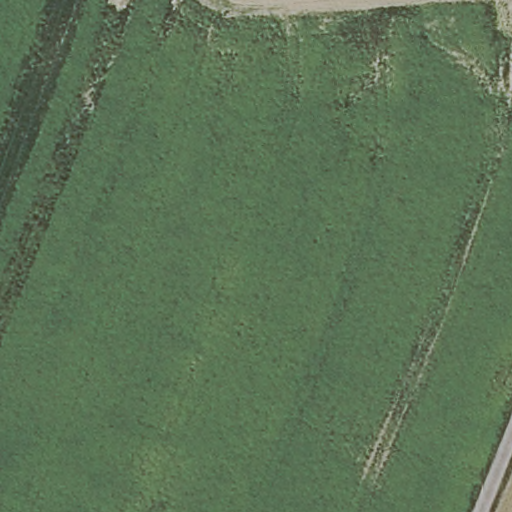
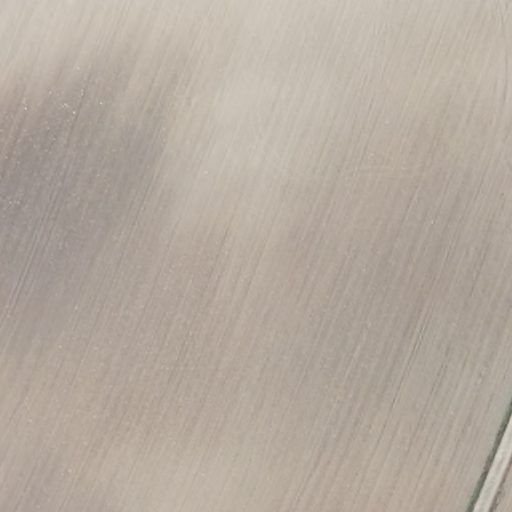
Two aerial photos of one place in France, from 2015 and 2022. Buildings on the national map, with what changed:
[]

